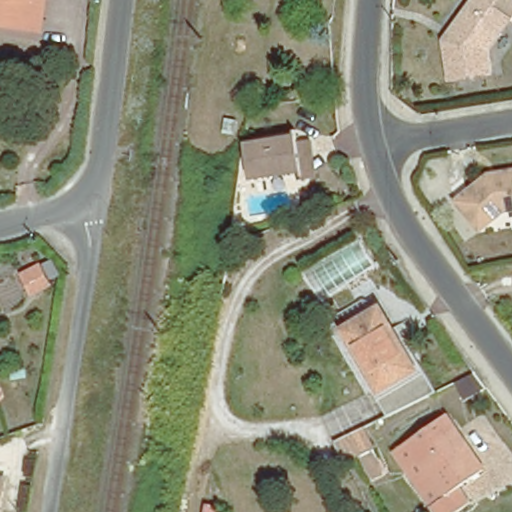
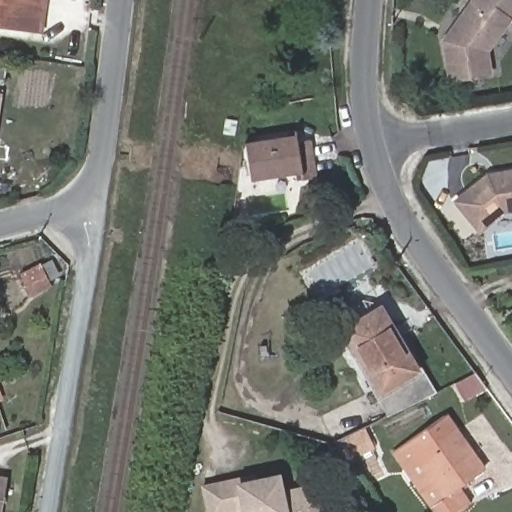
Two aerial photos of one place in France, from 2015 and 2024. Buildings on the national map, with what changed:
unchanged [(0,28),(0,0),(47,0),(46,9),(42,34),(25,32),(0,28)]
unchanged [(501,0),(492,11),(508,24),(488,49),(483,49),(483,55),(486,78),(448,82),(441,44),(451,31),(474,0),(501,0)]
new [(3,94),(0,114),(0,93),(3,94)]
unchanged [(299,165),(299,160),(247,167),(242,131),(293,125),(294,130),(307,130),(310,146),(312,164),(299,165)]
unchanged [(512,170),(512,207),(501,209),(478,229),(454,201),(485,174),(512,170)]
unchanged [(54,283),(33,291),(25,267),(46,260),(54,283)]
unchanged [(343,327),(380,306),(418,374),(381,395),(343,327)]
unchanged [(410,438),(452,409),(489,461),(464,478),(477,496),(454,512),(448,512),(437,496),(401,445),(410,438)]
unchanged [(370,447),(347,459),(340,445),(363,435),(370,447)]
new [(230,512),(205,512),(200,483),(241,474),(242,482),(248,508),(230,512)]
unchanged [(3,478),(0,500),(0,478),(3,478)]
new [(259,478),(260,484),(283,478),(286,496),(320,490),(325,512),(248,512),(242,482),(259,478)]

